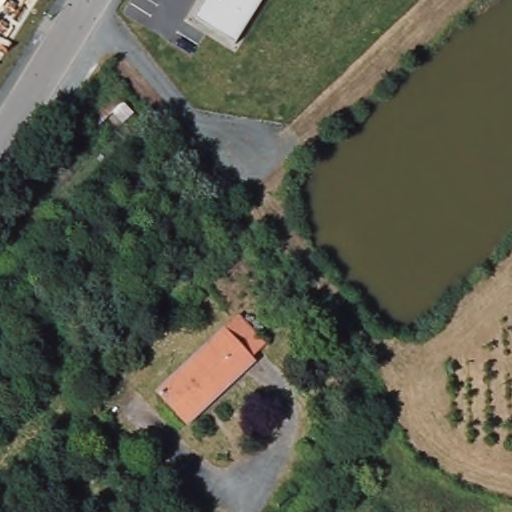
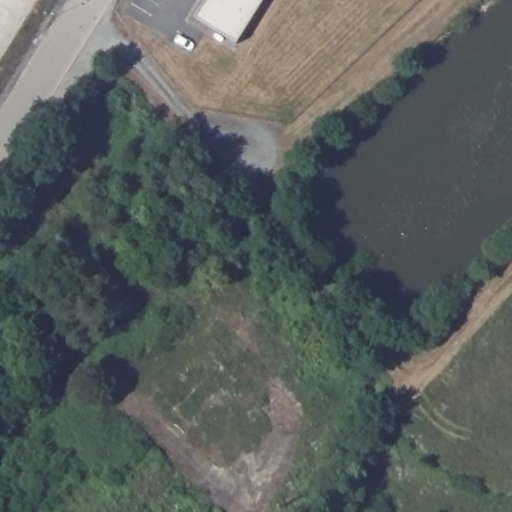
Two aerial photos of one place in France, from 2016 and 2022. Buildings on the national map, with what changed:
unchanged [(196,16),(207,0),(262,0),(237,42),(196,16)]
demolished [(241,311),(266,339),(252,352),(257,357),(191,418),(161,385),(241,311)]

